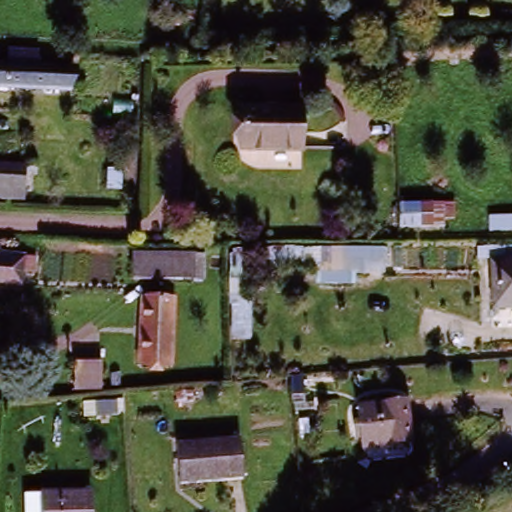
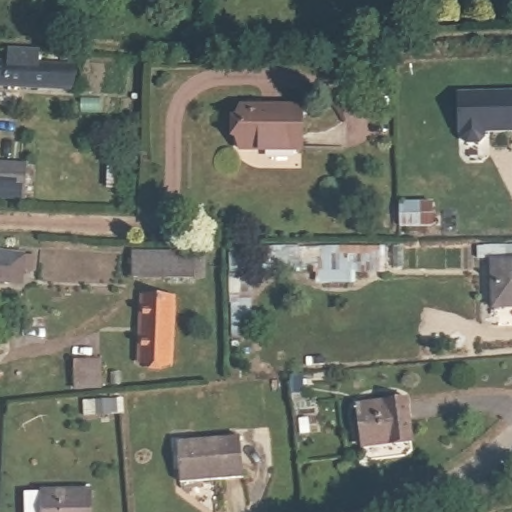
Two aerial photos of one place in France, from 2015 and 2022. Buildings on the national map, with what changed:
unchanged [(70,86),(0,84),(0,57),(16,57),(16,37),(37,38),(36,58),(70,60),(70,86)]
new [(512,134),(487,134),(485,140),(479,145),(467,145),(460,139),(454,138),(454,93),(512,92),(512,134)]
unchanged [(249,152),(247,109),(306,105),(309,149),(249,152)]
unchanged [(17,165),(14,198),(0,197),(0,164),(17,165)]
unchanged [(380,204),(419,203),(465,201),(466,222),(420,224),(381,225),(380,204)]
unchanged [(146,247),(129,246),(129,233),(146,234),(146,247)]
unchanged [(21,255),(33,257),(41,258),(39,275),(31,273),(31,278),(18,277),(18,285),(0,284),(0,254),(21,255)]
unchanged [(189,283),(134,286),(132,262),(133,256),(147,256),(148,261),(188,259),(189,283)]
unchanged [(512,267),(512,310),(494,311),(492,268),(512,267)]
unchanged [(145,303),(173,302),(174,364),(146,365),(145,303)]
unchanged [(103,392),(71,396),(76,362),(103,362),(103,392)]
unchanged [(357,408),(408,403),(411,442),(361,447),(357,408)]
unchanged [(244,481),(183,488),(179,447),(240,441),(244,481)]
unchanged [(74,512),(27,512),(26,497),(73,493),(74,512)]

